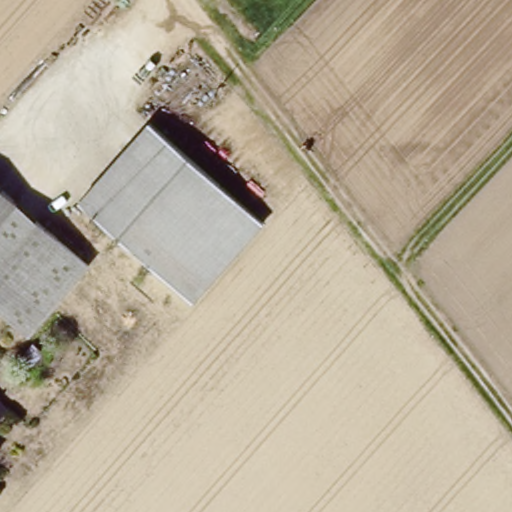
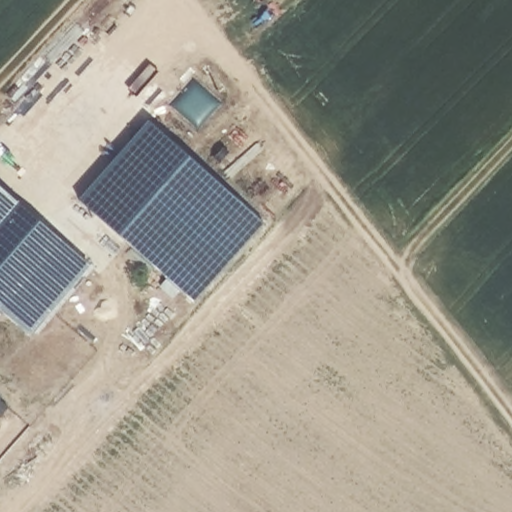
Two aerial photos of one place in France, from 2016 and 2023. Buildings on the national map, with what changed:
unchanged [(151,122),(265,226),(195,305),(77,203),(151,122)]
unchanged [(0,226),(0,182),(22,200),(0,226)]
unchanged [(0,303),(0,226),(22,200),(90,262),(30,334),(0,309),(0,305),(1,303),(0,303)]
unchanged [(0,305),(0,303),(1,303),(0,305)]
unchanged [(0,416),(0,391),(12,401),(0,416)]

